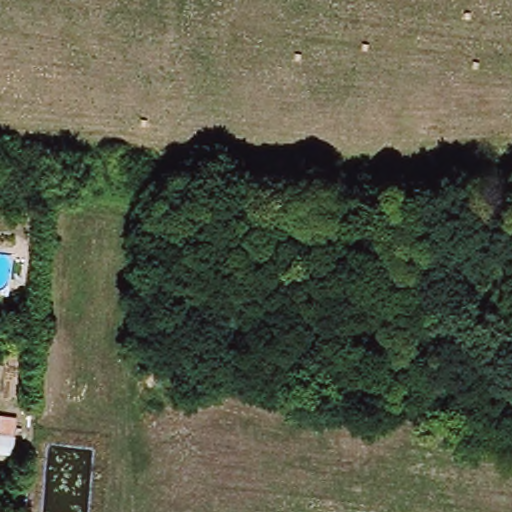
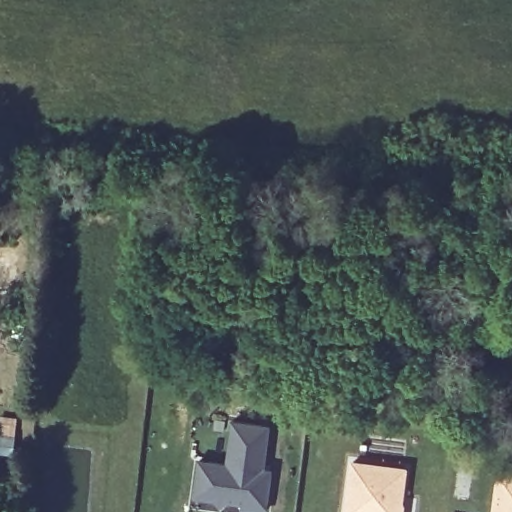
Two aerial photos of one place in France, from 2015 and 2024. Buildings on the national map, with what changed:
unchanged [(17,448),(0,446),(0,411),(20,413),(17,448)]
new [(266,465),(274,467),(268,512),(240,508),(241,502),(227,500),(219,508),(213,500),(194,497),(199,456),(225,459),(230,420),(270,424),(266,465)]
new [(403,512),(343,512),(350,459),(408,467),(403,512)]
unchanged [(512,512),(490,512),(495,471),(512,473),(512,512)]

